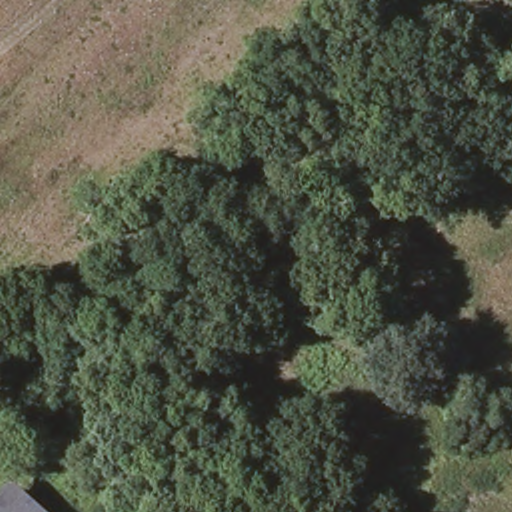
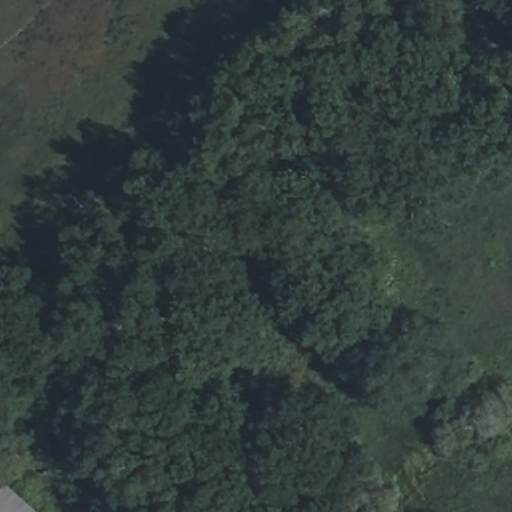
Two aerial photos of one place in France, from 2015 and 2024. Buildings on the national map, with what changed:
unchanged [(40,512),(0,512),(0,502),(11,488),(40,512)]

